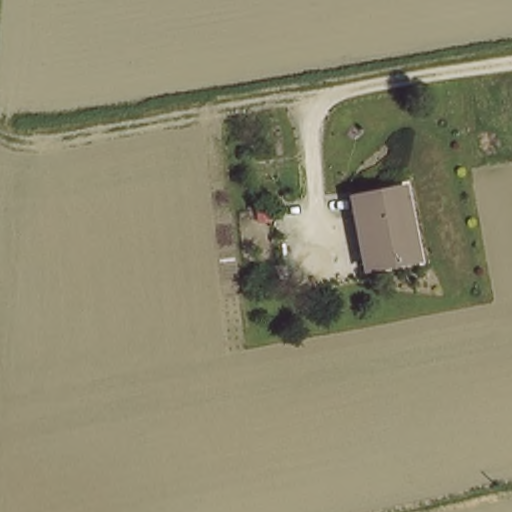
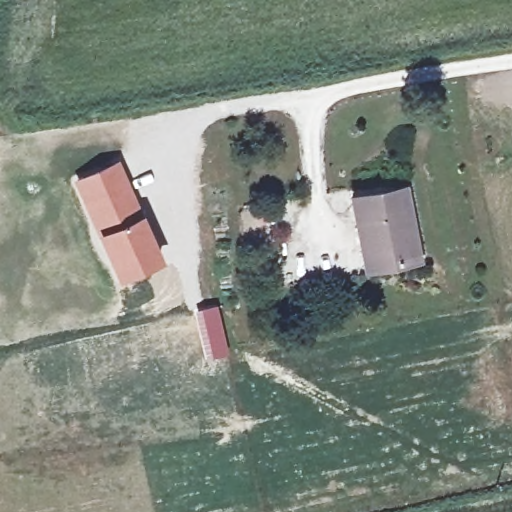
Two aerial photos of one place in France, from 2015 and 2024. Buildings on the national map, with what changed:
new [(118,158),(162,258),(115,279),(96,232),(71,180),(118,158)]
unchanged [(418,256),(365,263),(351,192),(394,184),(404,236),(414,234),(418,256)]

